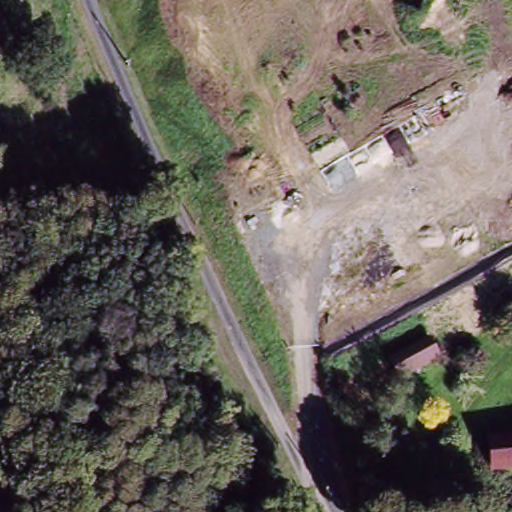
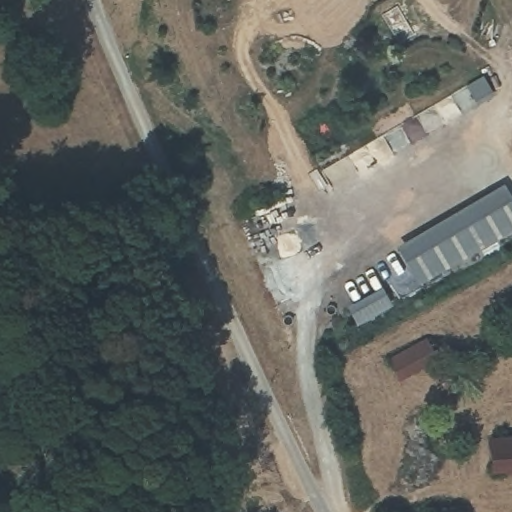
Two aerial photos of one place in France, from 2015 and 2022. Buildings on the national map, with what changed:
new [(512,230),(420,284),(397,245),(503,182),(512,197),(512,230)]
unchanged [(384,359),(420,338),(429,355),(394,377),(384,359)]
unchanged [(483,445),(512,441),(512,469),(488,472),(483,445)]

